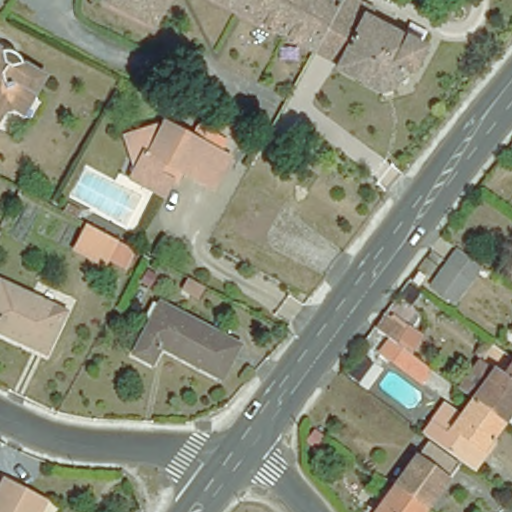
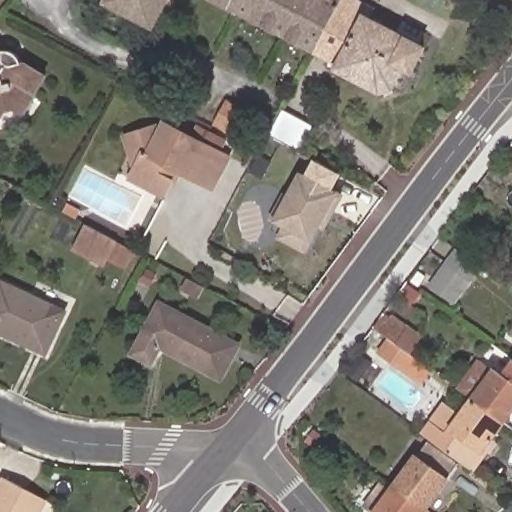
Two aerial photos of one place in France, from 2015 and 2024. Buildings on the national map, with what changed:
unchanged [(153,26),(107,1),(108,0),(167,0),(153,26)]
unchanged [(222,0),(333,0),(336,1),(337,0),(340,0),(313,49),(222,0)]
unchanged [(340,0),(354,0),(372,10),(367,18),(424,48),(411,71),(404,67),(393,88),(381,93),(337,69),(340,64),(313,49),(340,0)]
unchanged [(14,107),(7,109),(0,120),(0,49),(7,54),(8,54),(9,54),(10,54),(11,54),(12,54),(13,54),(14,54),(15,55),(16,55),(17,55),(18,56),(19,57),(20,58),(20,59),(21,60),(22,61),(47,76),(26,115),(14,107)]
unchanged [(216,126),(229,101),(253,114),(240,139),(216,126)]
unchanged [(129,180),(136,169),(125,137),(136,134),(156,127),(158,135),(165,124),(179,131),(184,120),(213,136),(208,146),(230,157),(213,191),(180,174),(174,183),(165,199),(129,180)]
new [(312,242),(306,254),(277,239),(285,227),(274,221),(301,172),(340,194),(343,196),(325,231),(320,230),(312,242)]
unchanged [(56,199),(68,205),(65,213),(53,206),(56,199)]
unchanged [(114,265),(112,269),(84,254),(97,230),(107,235),(125,244),(114,265)]
unchanged [(483,267),(454,305),(429,285),(457,249),(483,267)]
unchanged [(193,281),(187,293),(170,284),(176,272),(193,281)]
unchanged [(0,333),(0,284),(1,282),(65,312),(45,353),(0,333)]
unchanged [(221,378),(160,347),(152,363),(134,353),(161,304),(239,346),(221,378)]
unchanged [(422,385),(379,352),(389,338),(375,328),(385,315),(407,331),(397,345),(433,370),(422,385)]
unchanged [(510,332),(512,331),(512,334),(510,332)]
unchanged [(459,390),(480,361),(492,371),(495,367),(503,373),(512,361),(512,416),(506,423),(472,398),(459,390)]
unchanged [(444,401),(461,413),(472,398),(506,423),(484,453),(486,455),(475,470),(421,430),(444,401)]
unchanged [(418,453),(420,454),(428,442),(459,465),(451,476),(453,478),(429,510),(395,484),(418,453)]
unchanged [(428,512),(375,512),(395,484),(429,510),(428,512)]
unchanged [(44,505),(41,512),(0,512),(0,496),(6,485),(44,505)]

